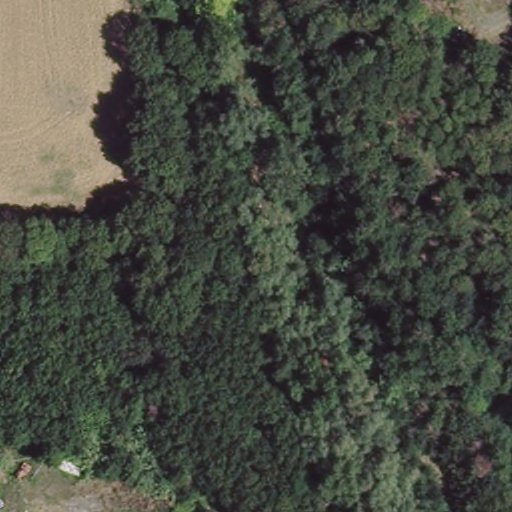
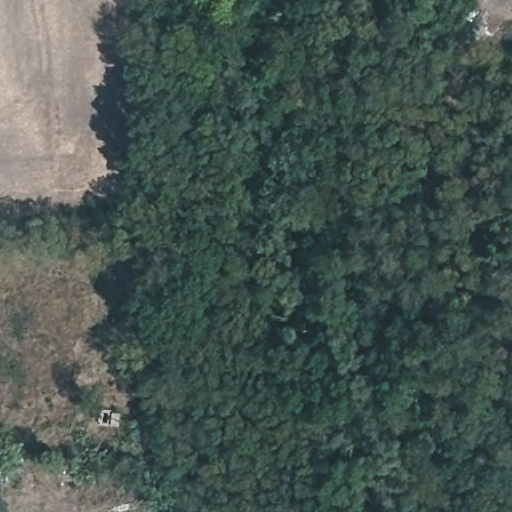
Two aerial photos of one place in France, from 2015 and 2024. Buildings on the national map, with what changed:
unchanged [(106,406),(122,413),(115,428),(100,422),(106,406)]

